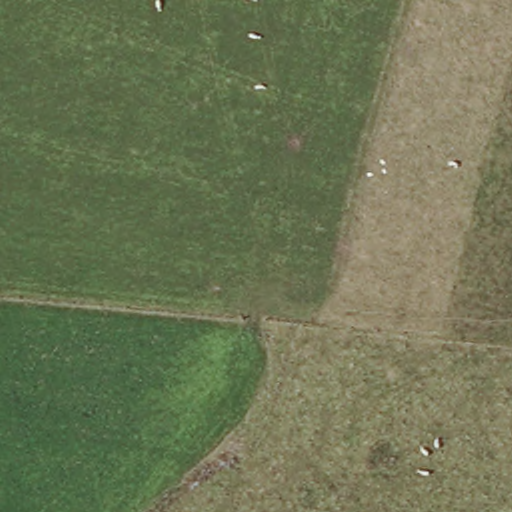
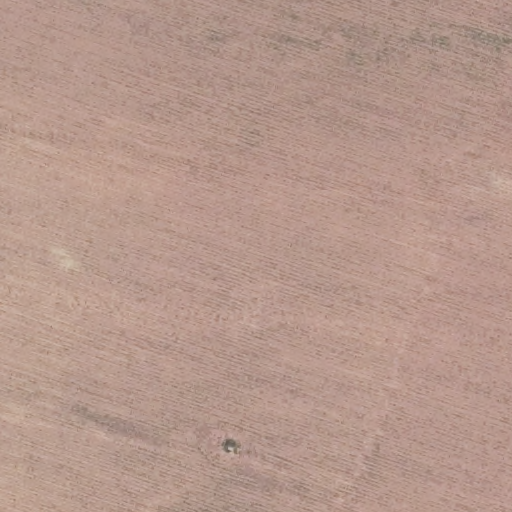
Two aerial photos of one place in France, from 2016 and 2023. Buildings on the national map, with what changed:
[]

